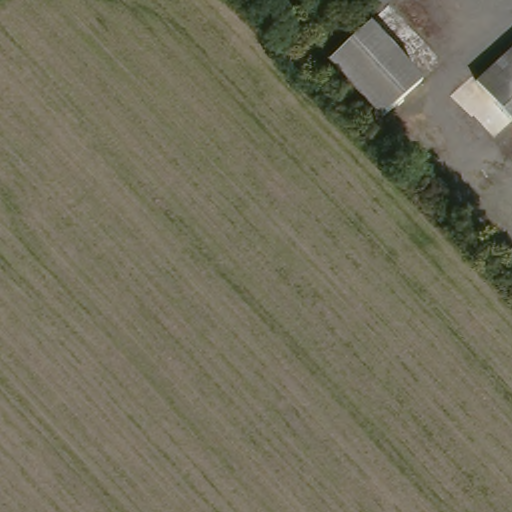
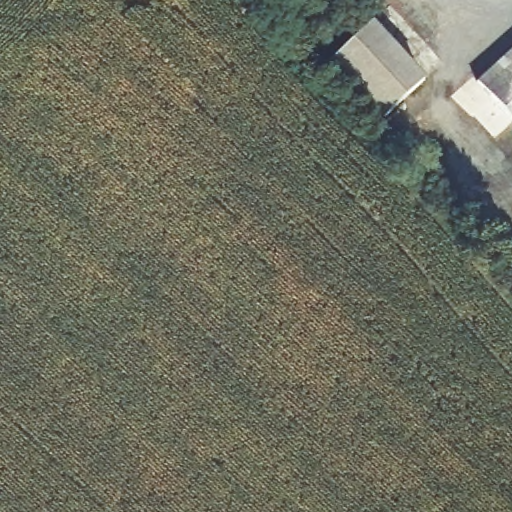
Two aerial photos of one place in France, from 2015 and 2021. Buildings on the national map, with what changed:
unchanged [(422,80),(385,120),(330,71),(367,30),(422,80)]
unchanged [(476,86),(512,52),(512,125),(476,86)]

